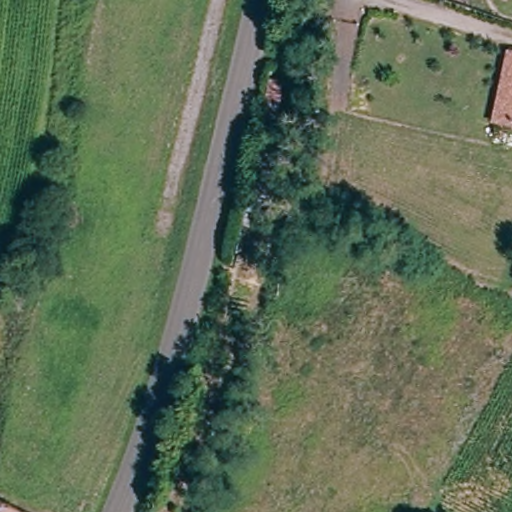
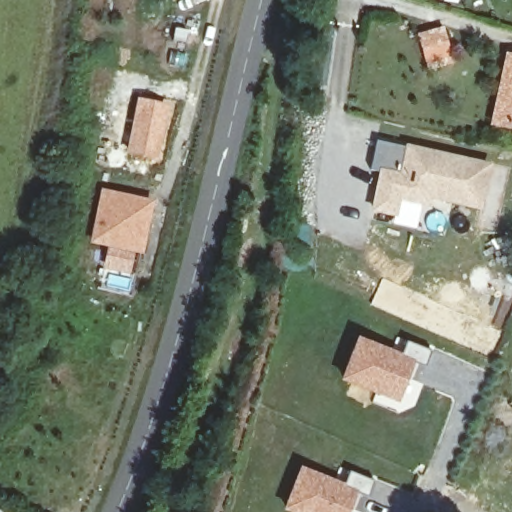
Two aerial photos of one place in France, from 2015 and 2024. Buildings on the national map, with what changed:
unchanged [(501,89),(510,54),(512,55),(512,126),(497,123),(493,121),(501,89)]
new [(412,147),(449,154),(493,163),(485,205),(433,195),(432,203),(403,197),(400,214),(378,210),(385,173),(374,170),(380,141),(412,147)]
new [(102,192),(150,202),(141,250),(92,240),(102,192)]
new [(358,341),(400,357),(406,343),(431,352),(425,369),(412,363),(397,401),(343,380),(358,341)]
new [(302,470),(344,487),(350,472),(375,482),(369,498),(356,492),(348,512),(296,512),(287,509),(302,470)]

